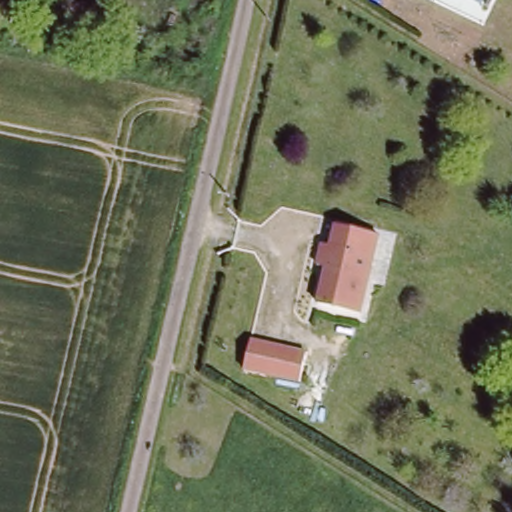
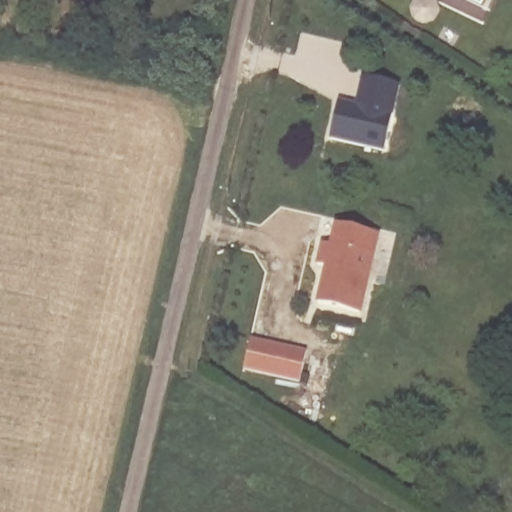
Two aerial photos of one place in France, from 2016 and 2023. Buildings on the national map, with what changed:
new [(340,103),(357,107),(364,79),(400,87),(385,152),(331,140),(340,103)]
unchanged [(320,242),(330,244),(334,224),(383,234),(367,312),(317,302),(326,263),(316,262),(320,242)]
unchanged [(253,337),(311,349),(305,376),(247,364),(253,337)]

